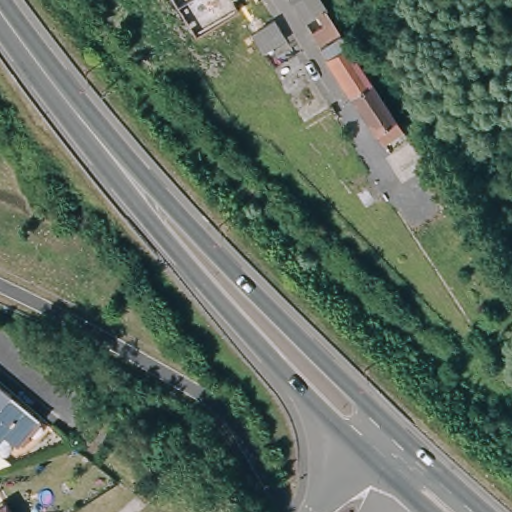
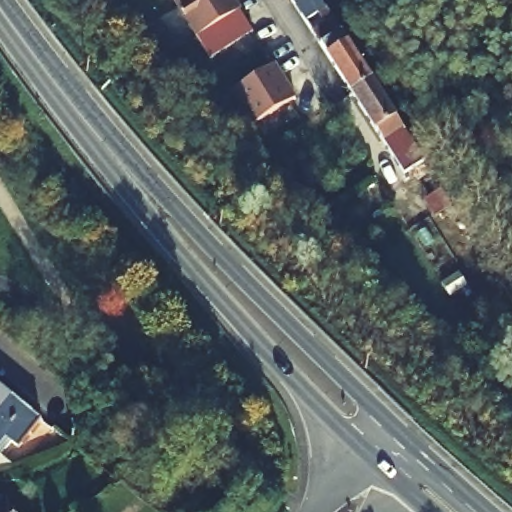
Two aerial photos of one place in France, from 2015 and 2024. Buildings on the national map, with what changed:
new [(239,11),(197,38),(172,0),(232,0),(239,11)]
unchanged [(292,2),(291,0),(295,0),(292,2)]
unchanged [(367,80),(350,91),(292,2),(295,0),(320,0),(370,78),(367,80)]
new [(250,36),(210,60),(197,38),(239,11),(250,36)]
new [(295,98),(250,128),(228,95),(275,63),(295,98)]
unchanged [(367,80),(370,78),(400,126),(380,139),(350,91),(367,80)]
new [(380,139),(400,126),(424,159),(402,173),(380,139)]
unchanged [(20,448),(14,443),(4,455),(15,465),(0,472),(0,382),(14,393),(45,419),(20,448)]
unchanged [(10,512),(0,512),(0,507),(5,503),(10,512)]

